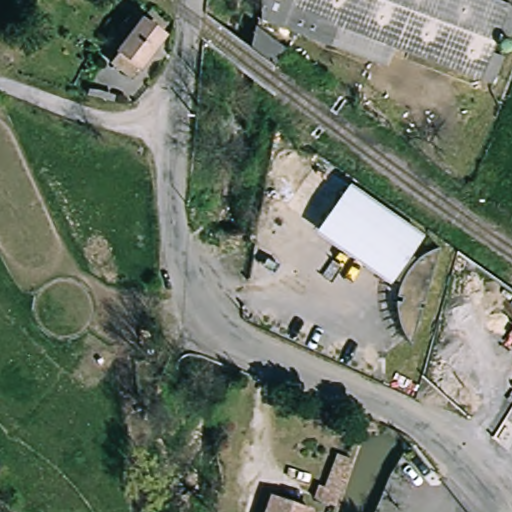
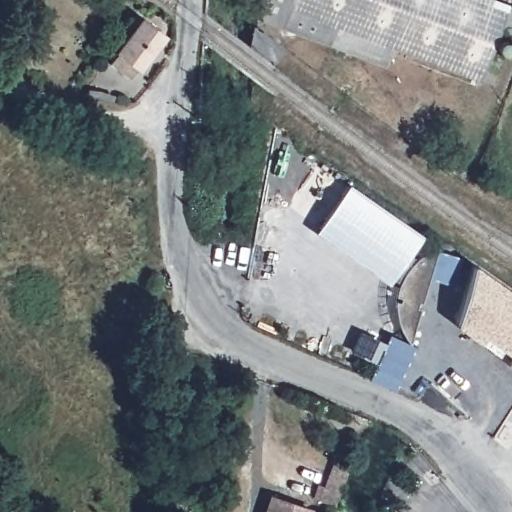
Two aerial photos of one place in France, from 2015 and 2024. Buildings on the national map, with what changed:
unchanged [(285,30),(257,14),(259,0),(295,0),(292,9),(285,30)]
unchanged [(482,83),(292,9),(295,0),(501,0),(512,4),(482,83)]
unchanged [(512,4),(512,38),(493,88),(482,83),(512,4)]
unchanged [(144,71),(141,75),(122,61),(125,56),(124,56),(145,25),(166,40),(145,71),(144,71)]
unchanged [(332,168),(428,247),(392,291),(305,210),(332,168)]
new [(512,293),(512,360),(457,328),(475,267),(512,293)]
unchanged [(316,508),(315,512),(266,512),(272,496),(316,508)]

